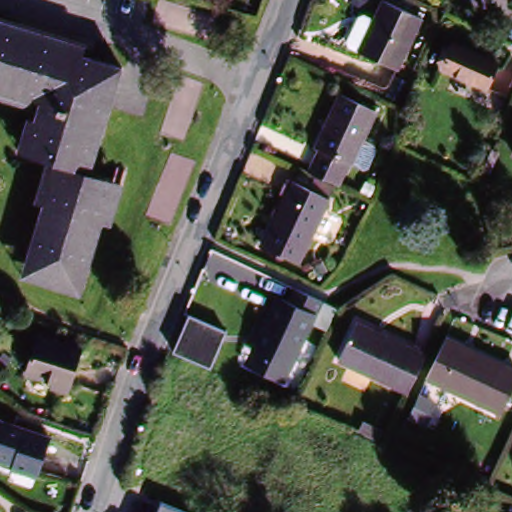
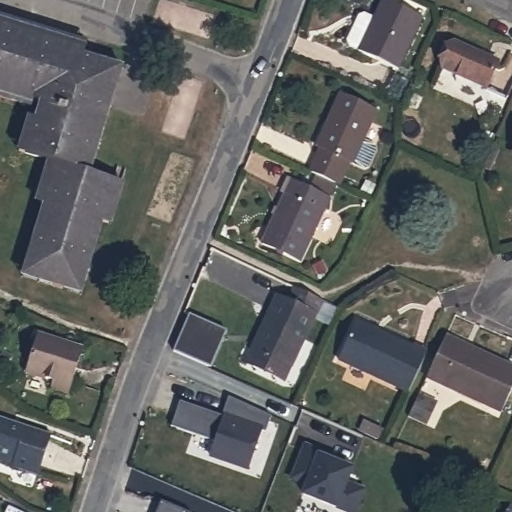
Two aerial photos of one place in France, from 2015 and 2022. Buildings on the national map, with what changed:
unchanged [(350,47),(347,41),(360,16),(365,15),(375,20),(384,0),(386,0),(423,17),(398,70),(350,47)]
unchanged [(90,48),(88,54),(126,65),(114,105),(93,171),(126,181),(112,225),(104,222),(89,270),(82,296),(22,278),(30,253),(45,205),(37,203),(49,169),(52,161),(27,154),(19,151),(29,118),(37,121),(44,101),(36,98),(34,108),(0,98),(0,12),(92,41),(90,48)]
unchanged [(495,57),(482,83),(437,63),(450,36),(495,57)]
unchanged [(315,150),(309,147),(320,123),(335,93),(373,110),(348,165),(342,161),(331,185),(304,173),(315,150)]
unchanged [(510,156),(512,150),(512,157),(510,156)]
unchanged [(328,197),(297,262),(260,246),(291,180),(328,197)]
unchanged [(244,366),(251,351),(275,297),(287,303),(292,288),(301,292),(320,301),(291,368),(284,383),(244,366)]
unchanged [(227,332),(212,368),(176,351),(190,316),(227,332)]
unchanged [(337,361),(354,322),(426,355),(408,394),(337,361)]
unchanged [(49,382),(51,375),(24,366),(35,330),(80,345),(70,381),(67,387),(49,382)]
unchanged [(445,338),(512,369),(512,392),(502,415),(426,379),(445,338)]
unchanged [(421,391),(435,397),(422,424),(407,418),(421,391)]
new [(180,399),(221,416),(229,397),(272,416),(265,432),(260,430),(243,471),(207,456),(213,442),(170,424),(180,399)]
unchanged [(32,476),(0,464),(0,418),(48,435),(32,476)]
new [(322,453),(334,458),(332,463),(352,470),(346,485),(364,492),(356,512),(346,512),(304,496),(307,486),(292,480),(306,447),(322,453)]
new [(162,502),(186,512),(157,512),(162,502)]
unchanged [(510,512),(506,512),(507,511),(510,512)]

